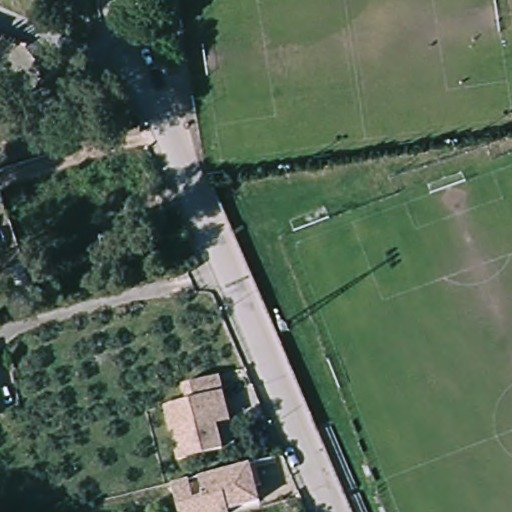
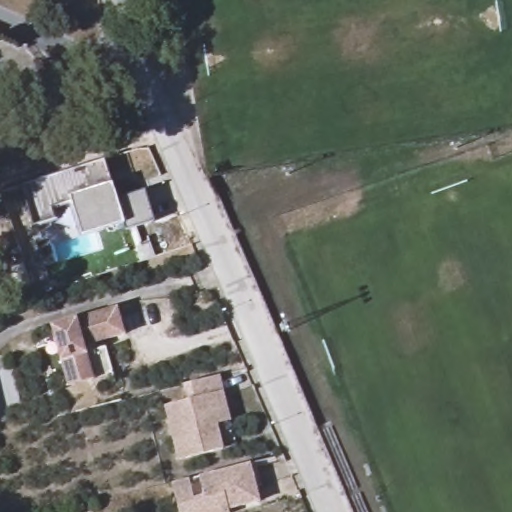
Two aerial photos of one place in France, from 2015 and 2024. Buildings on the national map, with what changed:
new [(113,159),(125,199),(154,190),(164,222),(134,231),(131,220),(110,227),(107,217),(86,223),(80,202),(60,208),(64,219),(41,226),(29,185),(113,159)]
new [(119,306),(126,333),(86,344),(95,378),(69,384),(53,324),(119,306)]
unchanged [(179,455),(164,401),(187,395),(183,379),(218,371),(222,386),(230,415),(216,418),(223,443),(179,455)]
unchanged [(250,463),(259,500),(228,508),(228,512),(178,512),(171,482),(250,463)]

